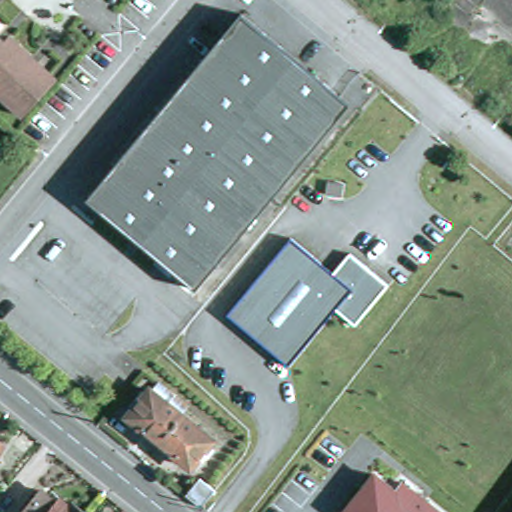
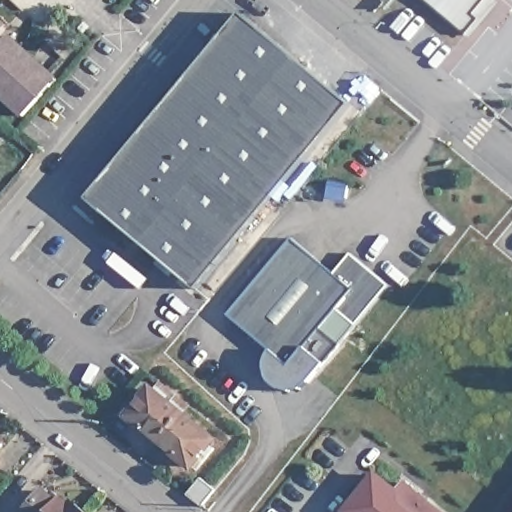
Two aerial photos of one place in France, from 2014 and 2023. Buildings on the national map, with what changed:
new [(471,37),(465,32),(424,0),(498,0),(500,2),(471,37)]
unchanged [(149,251),(147,253),(88,207),(242,20),(298,65),(149,251)]
unchanged [(25,121),(0,99),(0,44),(3,47),(9,42),(33,63),(57,84),(52,89),(25,121)]
unchanged [(352,108),(201,293),(149,251),(298,65),(352,108)]
unchanged [(334,272),(352,255),(387,284),(353,322),(338,308),(289,367),(226,317),(290,239),(334,272)]
unchanged [(145,403),(140,399),(145,392),(150,397),(155,391),(187,415),(164,443),(132,419),(145,403)]
unchanged [(212,457),(207,454),(195,469),(164,443),(187,415),(218,441),(213,447),(217,451),(212,457)]
unchanged [(0,434),(12,443),(0,457),(5,461),(0,468),(0,434)]
unchanged [(397,487),(402,480),(442,512),(344,512),(373,471),(397,487)]
unchanged [(222,495),(208,512),(195,501),(208,483),(222,495)]
unchanged [(65,502),(67,498),(75,505),(78,502),(90,512),(25,512),(45,487),(65,502)]

